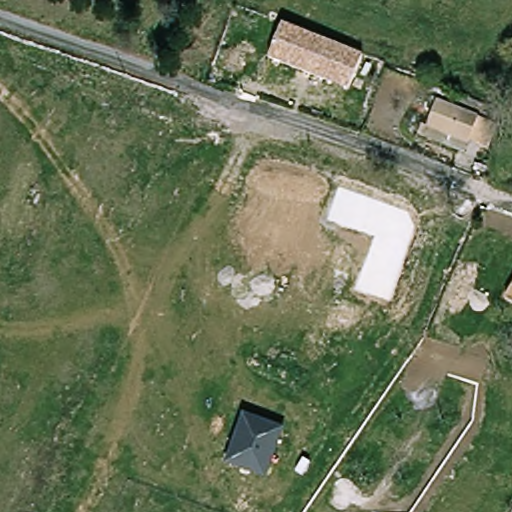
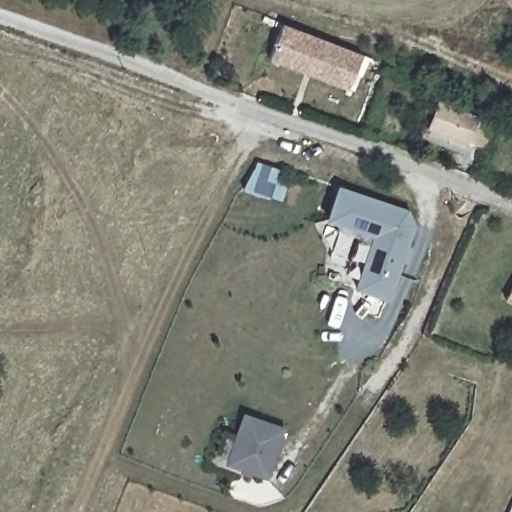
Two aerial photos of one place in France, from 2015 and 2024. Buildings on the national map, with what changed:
unchanged [(363,54),(350,90),(269,59),(283,23),(363,54)]
unchanged [(439,96),(485,116),(489,105),(499,109),(493,125),(496,126),(487,149),(428,123),(439,96)]
new [(415,225),(389,300),(356,289),(372,235),(326,220),(336,186),(407,207),(415,225)]
unchanged [(508,293),(512,286),(512,296),(508,293)]
unchanged [(285,429),(268,477),(228,463),(244,414),(285,429)]

